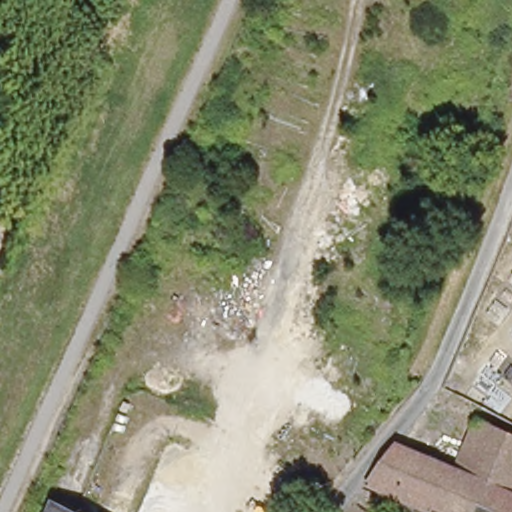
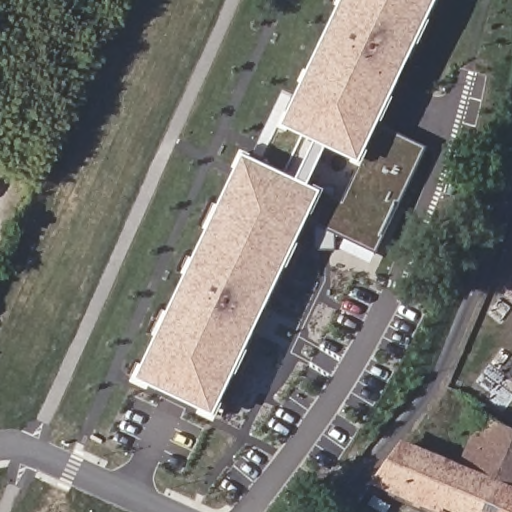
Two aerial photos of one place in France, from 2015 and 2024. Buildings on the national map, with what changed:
new [(358,161),(278,124),(338,0),(429,0),(358,161)]
new [(261,163),(278,124),(326,146),(307,186),(261,163)]
new [(335,233),(334,248),(318,250),(316,225),(302,219),(316,190),(340,199),(358,161),(375,124),(424,147),(375,252),(335,233)]
new [(240,152),(316,190),(210,412),(135,377),(240,152)]
unchanged [(401,450),(462,477),(491,408),(497,412),(512,420),(512,512),(442,512),(380,484),(401,450)]
demolished [(87,512),(55,512),(60,501),(87,512)]

